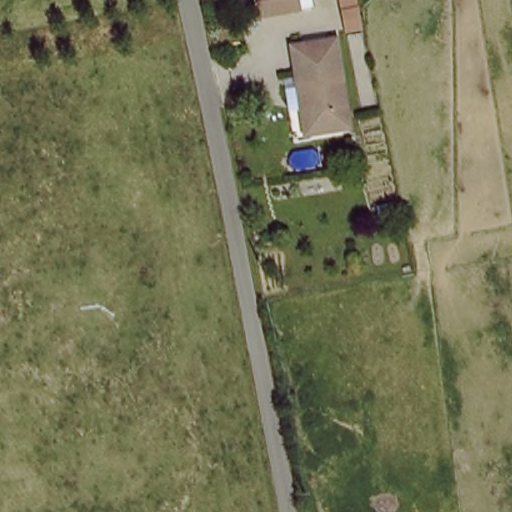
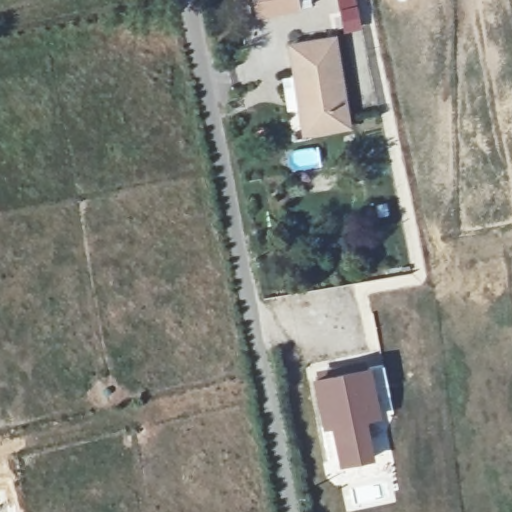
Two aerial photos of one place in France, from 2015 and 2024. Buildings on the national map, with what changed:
unchanged [(260,20),(254,0),(300,0),(302,13),(260,20)]
unchanged [(347,39),(340,0),(358,0),(364,36),(347,39)]
unchanged [(331,40),(347,130),(306,139),(294,79),(289,81),(284,48),(331,40)]
new [(370,365),(381,417),(368,420),(377,459),(340,467),(333,429),(324,431),(313,378),(370,365)]

